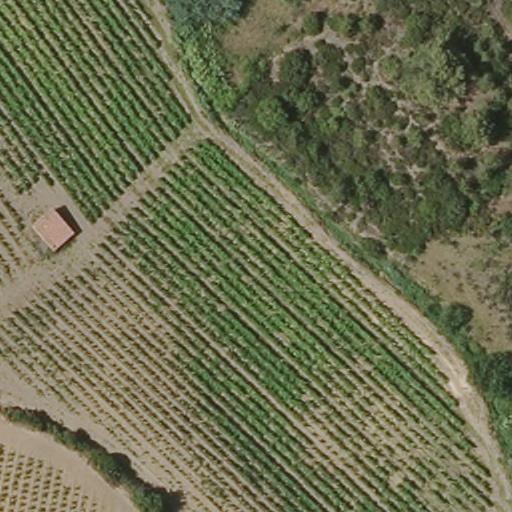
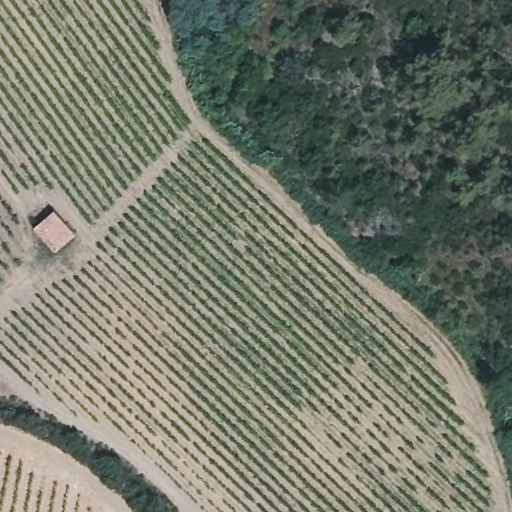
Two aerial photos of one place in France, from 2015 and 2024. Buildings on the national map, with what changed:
unchanged [(54,207),(75,232),(54,250),(33,226),(54,207)]

